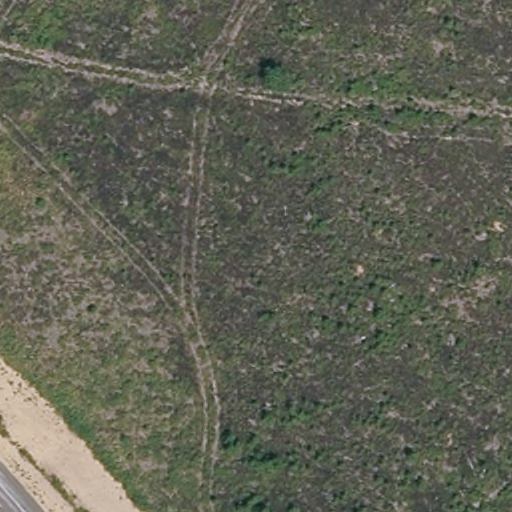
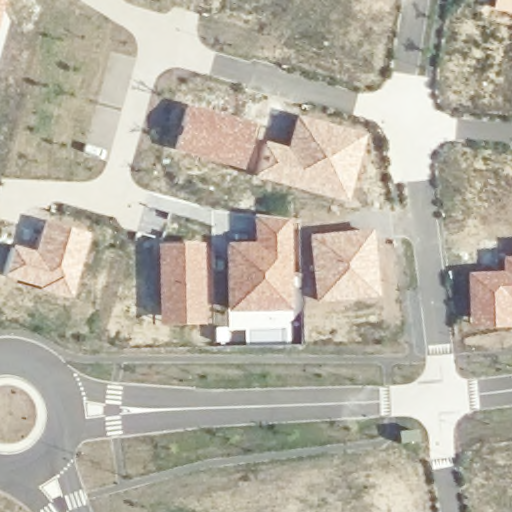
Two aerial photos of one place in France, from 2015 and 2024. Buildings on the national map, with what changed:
new [(2,0),(0,8),(0,0),(2,0)]
new [(493,0),(512,0),(512,14),(492,11),(493,0)]
new [(253,125),(240,171),(173,151),(185,104),(253,125)]
new [(296,116),(366,136),(346,204),(253,177),(264,142),(286,149),(296,116)]
new [(42,222),(88,236),(69,298),(37,290),(37,288),(1,277),(12,245),(33,252),(42,222)]
new [(226,305),(224,244),(252,242),(252,225),(286,224),(290,307),(233,305),(226,305)]
new [(307,236),(370,230),(377,298),(315,303),(307,236)]
new [(202,325),(157,326),(156,245),(201,244),(202,325)]
new [(511,328),(467,330),(465,274),(500,272),(499,258),(512,258),(512,302),(511,302),(511,328)]

